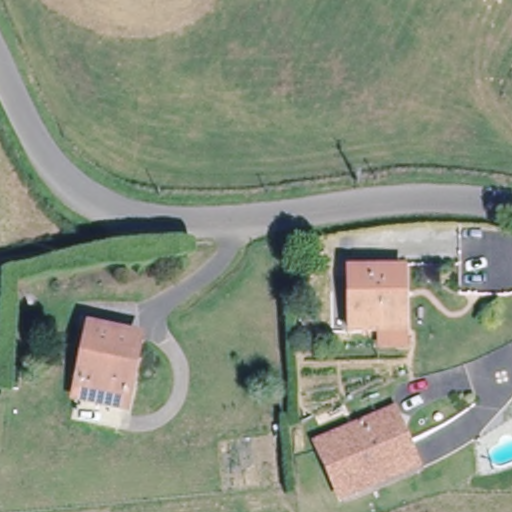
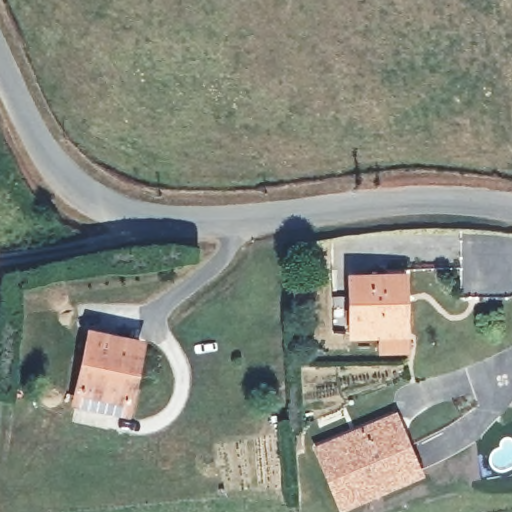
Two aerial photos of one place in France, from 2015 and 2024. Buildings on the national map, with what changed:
unchanged [(379,352),(380,336),(350,336),(348,276),(404,276),(404,335),(405,352),(379,352)]
unchanged [(291,284),(292,317),(275,317),(272,285),(291,284)]
unchanged [(107,400),(87,396),(95,325),(143,333),(137,385),(136,405),(107,400)]
unchanged [(341,505),(318,450),(395,418),(413,461),(418,473),(375,492),(341,505)]

